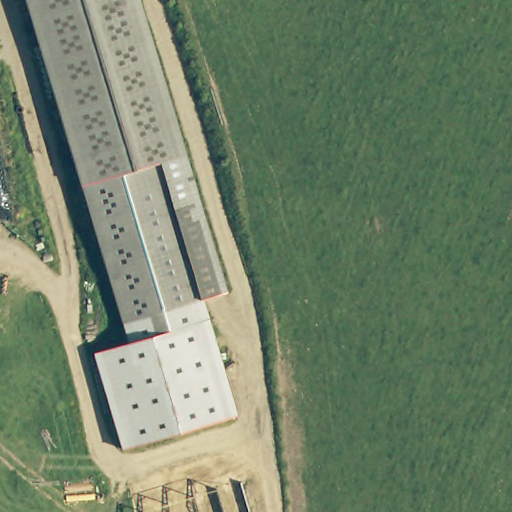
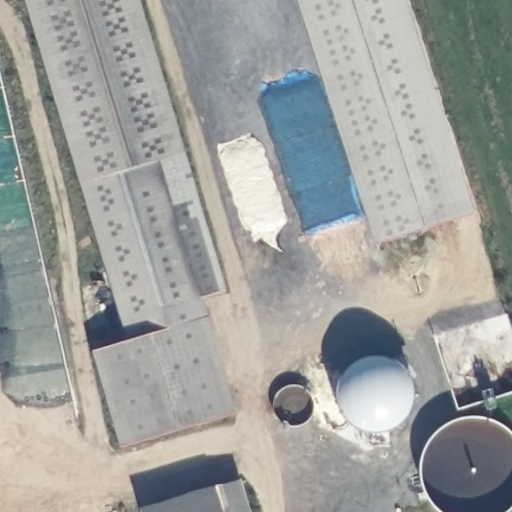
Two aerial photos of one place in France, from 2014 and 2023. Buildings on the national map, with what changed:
unchanged [(80,185),(24,0),(136,0),(182,154),(80,185)]
new [(375,244),(297,0),(407,0),(475,213),(375,244)]
unchanged [(182,154),(190,178),(214,259),(224,292),(122,323),(121,321),(82,192),(81,189),(80,185),(182,154)]
unchanged [(202,299),(208,318),(236,416),(121,447),(94,353),(127,343),(122,323),(202,299)]
new [(214,486),(240,478),(250,512),(140,512),(139,509),(214,486)]

